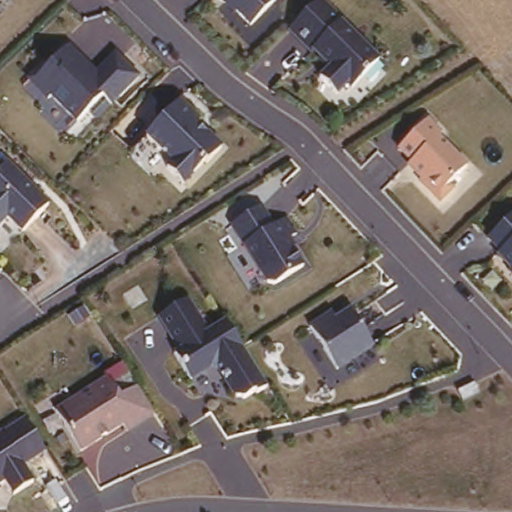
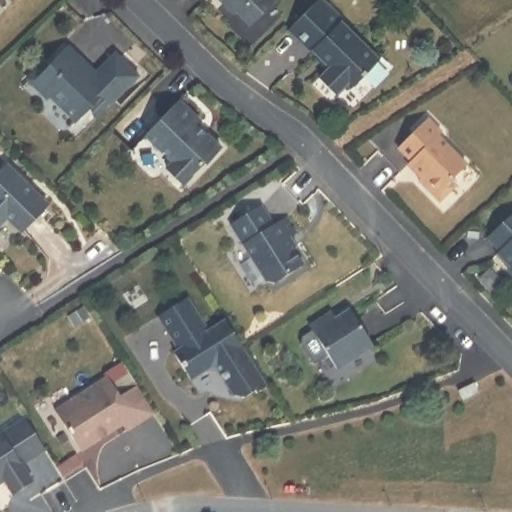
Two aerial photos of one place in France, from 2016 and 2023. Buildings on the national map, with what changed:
unchanged [(275,2),(253,26),(223,0),(273,0),(275,2)]
unchanged [(337,96),(303,51),(311,47),(295,26),(319,1),(339,23),(374,62),(337,96)]
unchanged [(97,70),(117,52),(140,76),(114,104),(104,96),(77,126),(30,81),(69,46),(97,70)]
unchanged [(222,146),(184,187),(165,171),(170,165),(144,137),(178,104),(222,146)]
unchanged [(410,168),(413,165),(395,149),(427,119),(444,137),(440,142),(466,171),(438,200),(410,168)]
unchanged [(45,205),(17,234),(5,221),(0,226),(0,168),(5,164),(45,205)]
unchanged [(277,226),(290,218),(300,233),(289,241),(302,270),(270,290),(229,227),(261,206),(277,226)]
unchanged [(510,265),(486,236),(512,213),(512,276),(506,269),(510,265)]
unchanged [(265,390),(241,405),(215,367),(192,381),(179,356),(155,316),(183,299),(204,337),(225,324),(265,390)]
unchanged [(372,351),(338,371),(311,328),(344,306),(372,351)]
unchanged [(118,397),(133,388),(150,414),(118,438),(111,430),(79,454),(54,418),(107,382),(118,397)]
unchanged [(49,453),(24,469),(33,488),(13,502),(2,486),(0,486),(0,436),(24,421),(49,453)]

